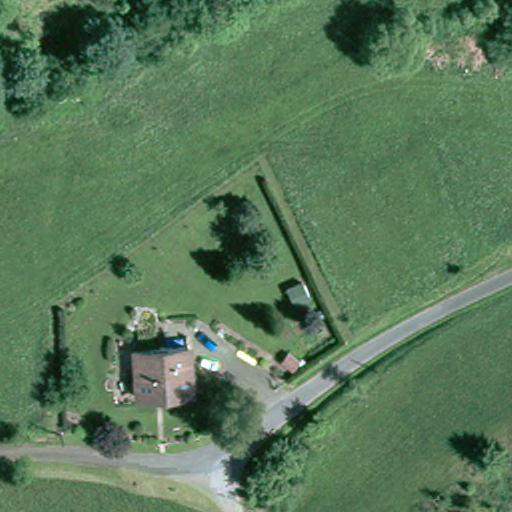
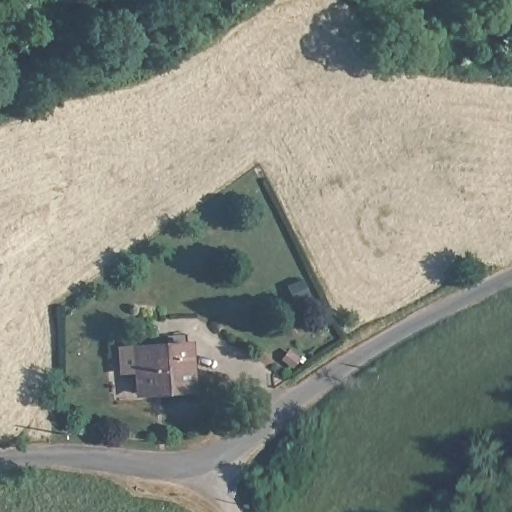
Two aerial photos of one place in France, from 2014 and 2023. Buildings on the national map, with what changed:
unchanged [(184,346),(191,391),(140,399),(133,354),(184,346)]

